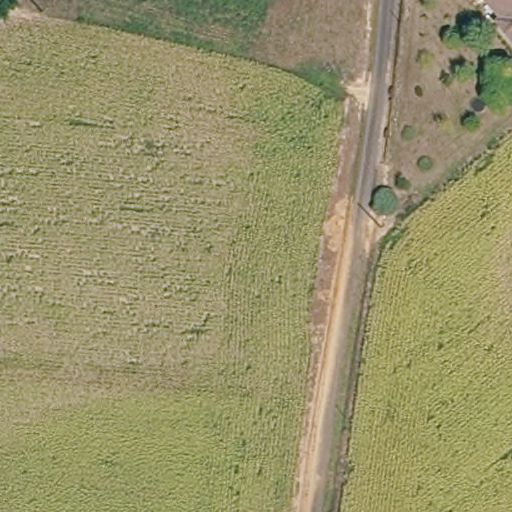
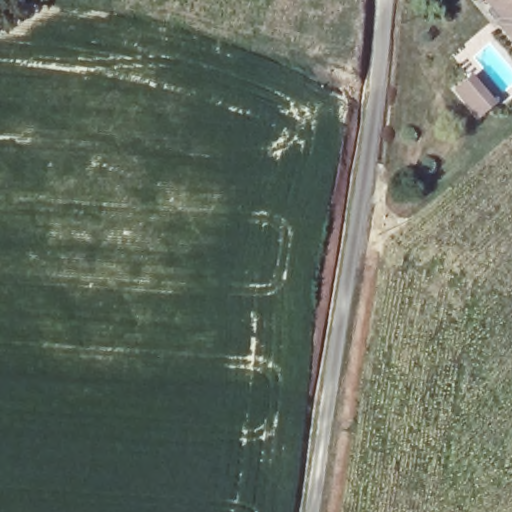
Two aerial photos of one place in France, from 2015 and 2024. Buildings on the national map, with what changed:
unchanged [(502,26),(481,0),(512,0),(512,38),(502,26)]

